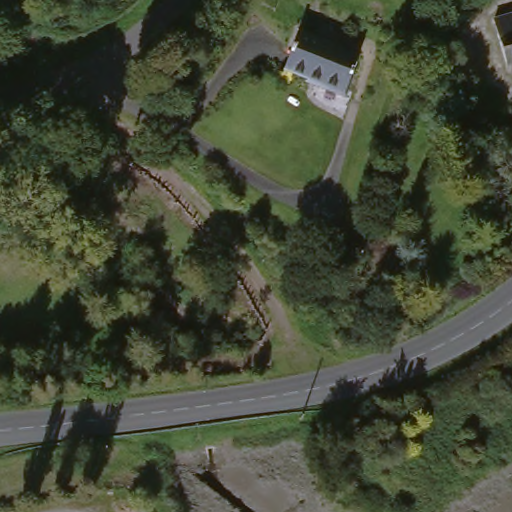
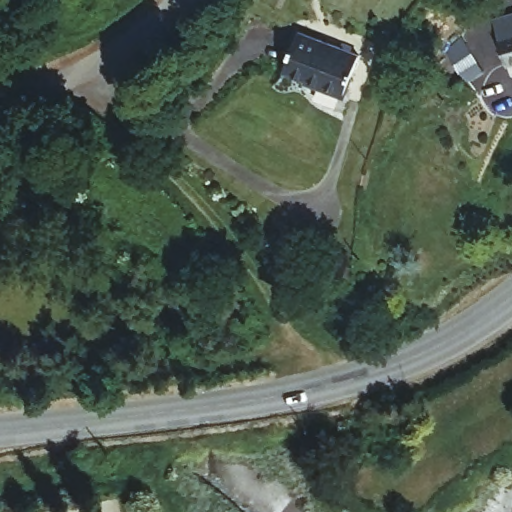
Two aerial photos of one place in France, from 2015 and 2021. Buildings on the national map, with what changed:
unchanged [(512,10),(512,58),(507,59),(498,13),(512,10)]
unchanged [(359,55),(344,92),(287,68),(301,31),(359,55)]

